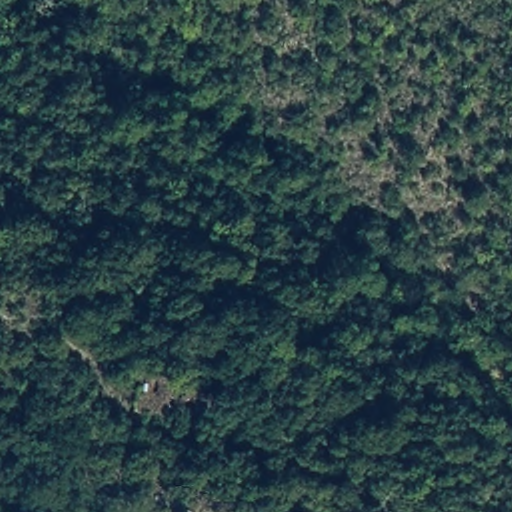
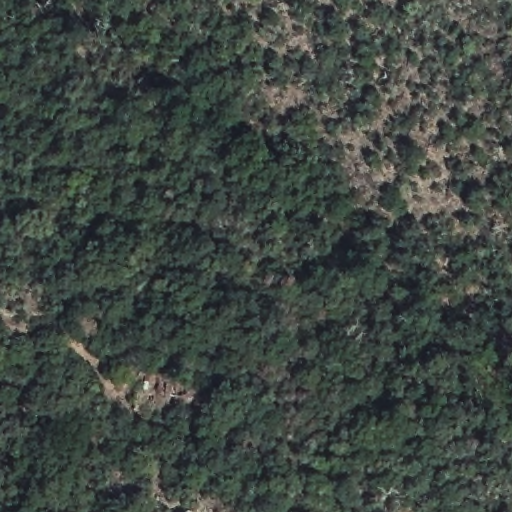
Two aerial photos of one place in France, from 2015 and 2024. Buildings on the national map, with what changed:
unchanged [(147,377),(211,387),(203,421),(141,408),(147,377)]

